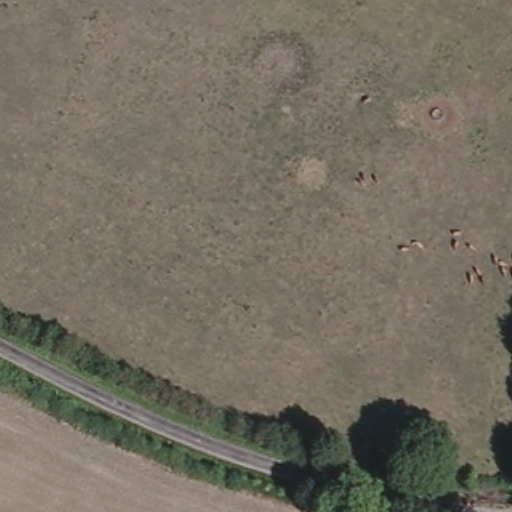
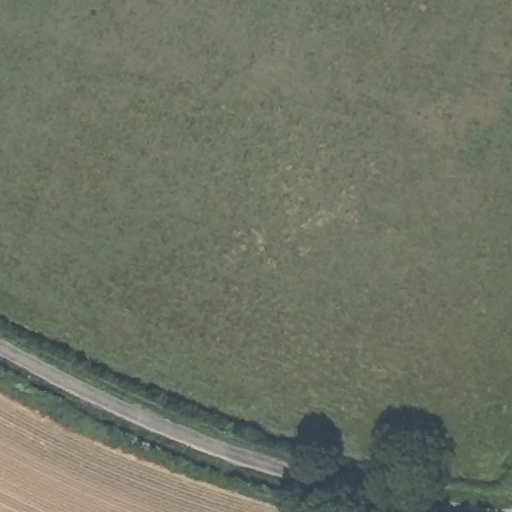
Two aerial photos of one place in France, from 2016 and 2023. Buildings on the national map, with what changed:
[]

